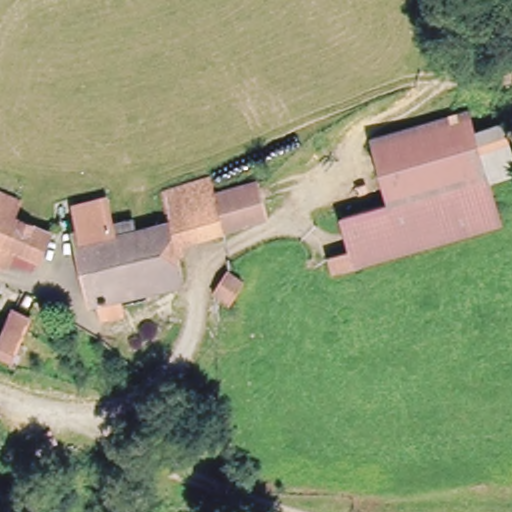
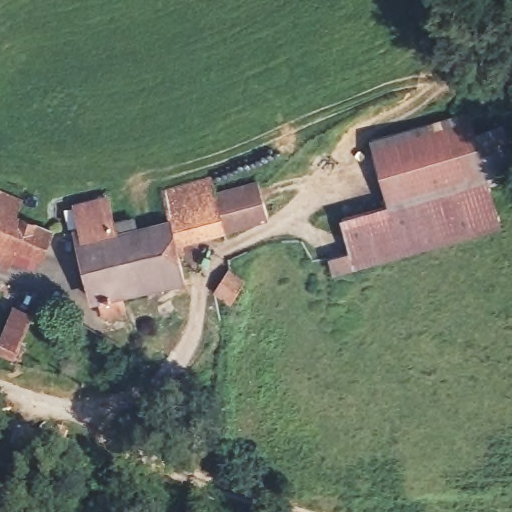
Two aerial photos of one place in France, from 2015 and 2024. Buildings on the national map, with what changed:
unchanged [(376,144),(470,116),(473,131),(487,183),(500,237),(356,275),(341,221),(391,210),(376,144)]
unchanged [(512,134),(512,174),(487,183),(473,131),(508,121),(512,134)]
unchanged [(157,190),(214,175),(218,194),(225,224),(170,240),(164,219),(157,190)]
unchanged [(218,194),(261,184),(263,190),(268,215),(225,224),(218,194)]
unchanged [(39,254),(11,246),(6,263),(0,261),(0,212),(12,218),(45,228),(39,254)]
unchanged [(109,221),(113,232),(164,219),(170,240),(179,272),(125,287),(130,306),(100,315),(76,231),(109,221)]
unchanged [(20,347),(1,341),(16,303),(35,312),(20,347)]

